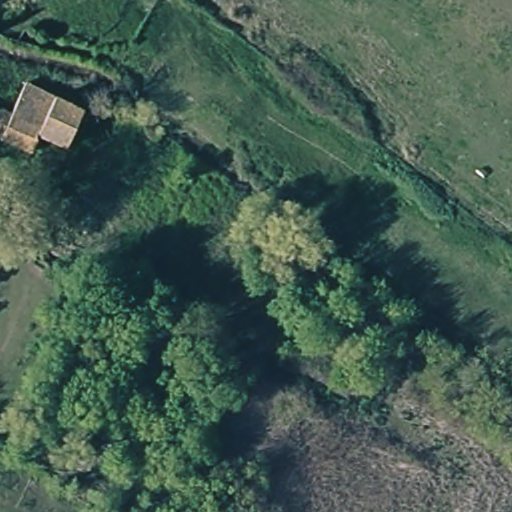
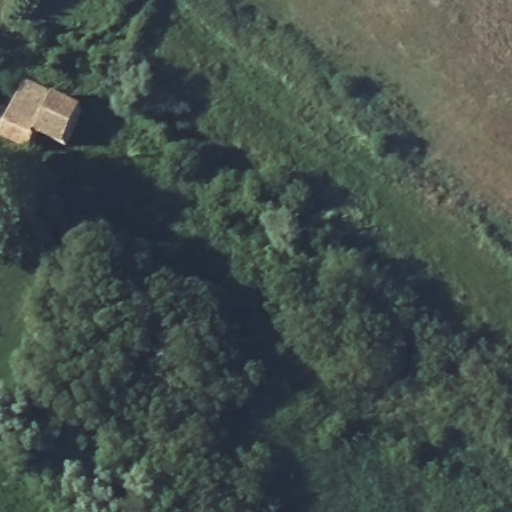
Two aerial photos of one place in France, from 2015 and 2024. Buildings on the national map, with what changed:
unchanged [(88,105),(70,142),(43,127),(34,144),(0,128),(0,96),(17,104),(33,75),(88,105)]

